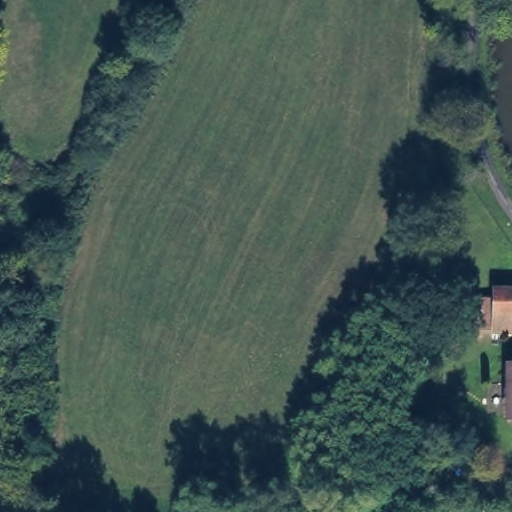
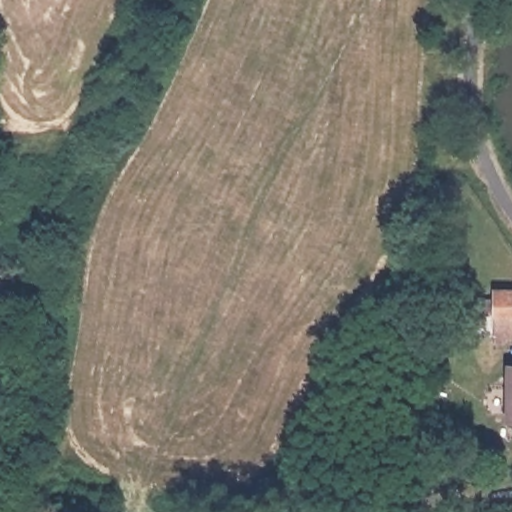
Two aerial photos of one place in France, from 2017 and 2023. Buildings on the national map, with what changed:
unchanged [(512,330),(490,330),(491,291),(512,291),(512,330)]
unchanged [(512,413),(508,412),(510,361),(512,362),(512,413)]

